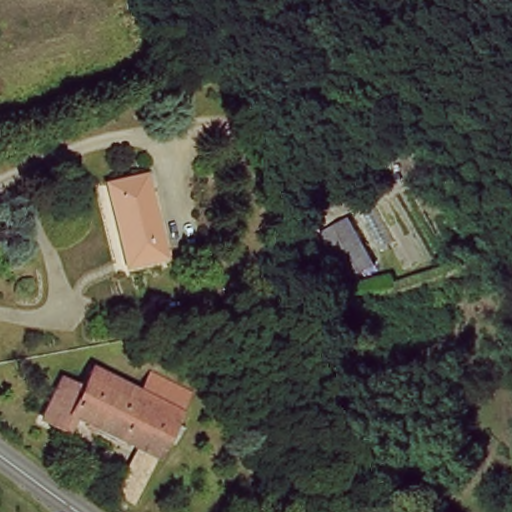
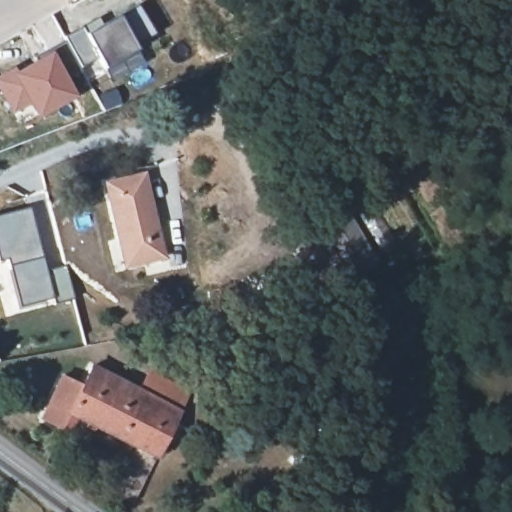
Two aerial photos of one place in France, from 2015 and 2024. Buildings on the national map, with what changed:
new [(95,95),(101,92),(94,80),(88,84),(65,40),(49,50),(32,25),(51,13),(63,37),(80,27),(98,17),(103,24),(120,15),(137,6),(154,32),(136,45),(146,66),(114,86),(123,104),(103,112),(95,95)]
new [(49,50),(76,96),(34,118),(27,107),(12,116),(0,96),(0,75),(49,50)]
unchanged [(146,175),(167,255),(128,262),(109,185),(146,175)]
new [(54,304),(15,312),(4,261),(0,262),(0,213),(29,206),(42,256),(46,270),(65,266),(73,299),(54,304)]
unchanged [(379,262),(351,279),(328,234),(352,218),(379,262)]
unchanged [(71,378),(112,401),(129,372),(149,383),(162,357),(198,379),(140,482),(120,470),(132,447),(76,417),(69,430),(48,418),(71,378)]

